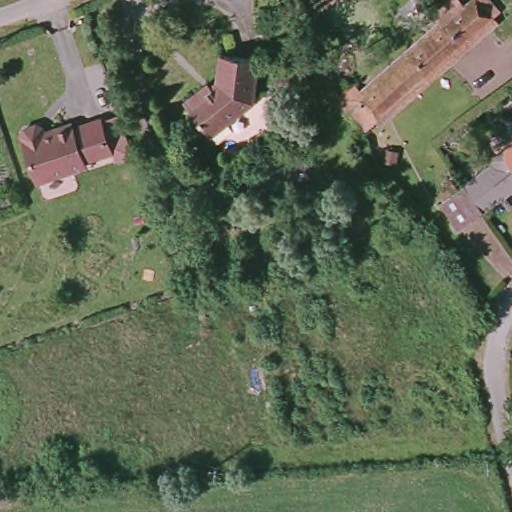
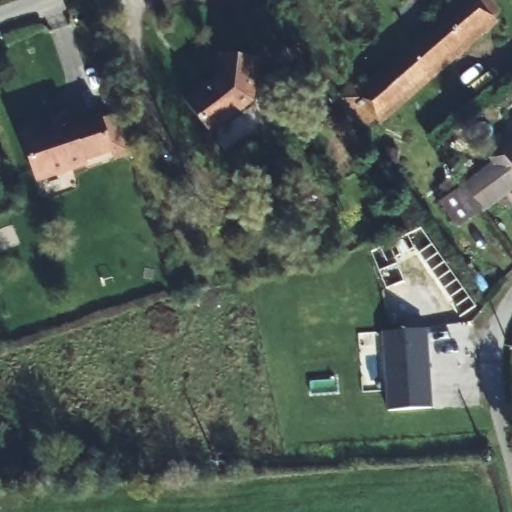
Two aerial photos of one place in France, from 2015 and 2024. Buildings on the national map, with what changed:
unchanged [(383,116),(355,82),(388,56),(395,50),(400,55),(432,29),(427,24),(447,6),(453,11),(465,0),(467,0),(477,13),(490,28),(383,116)]
unchanged [(186,106),(204,91),(212,99),(224,88),(225,59),(258,60),(255,104),(213,138),(186,106)]
unchanged [(336,99),(355,82),(383,116),(363,132),(336,99)]
unchanged [(18,123),(37,116),(42,127),(69,118),(72,122),(102,113),(112,156),(86,164),(88,172),(37,187),(18,123)]
unchanged [(462,197),(488,173),(494,180),(507,168),(492,152),(496,150),(498,148),(512,147),(512,191),(480,218),(485,224),(467,241),(444,215),(462,197)]
new [(431,407),(388,410),(382,332),(425,328),(431,407)]

